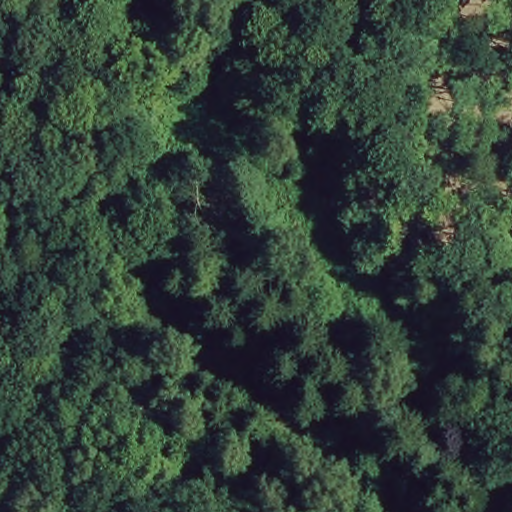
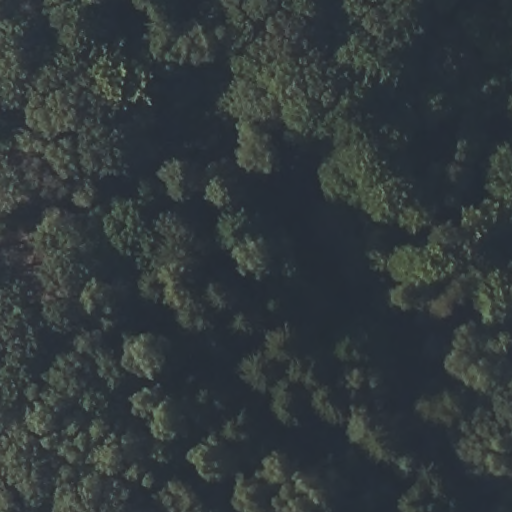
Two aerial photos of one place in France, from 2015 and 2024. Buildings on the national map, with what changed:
[]

